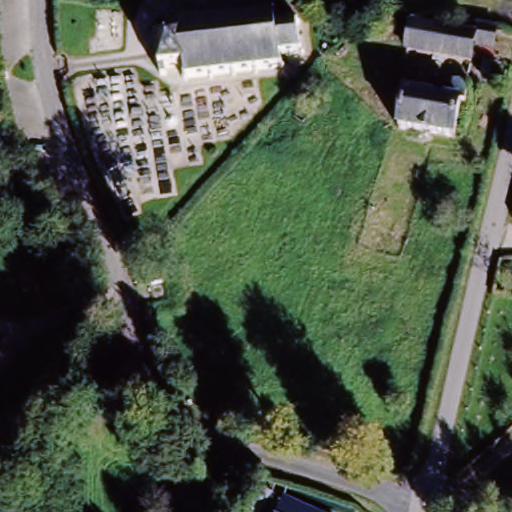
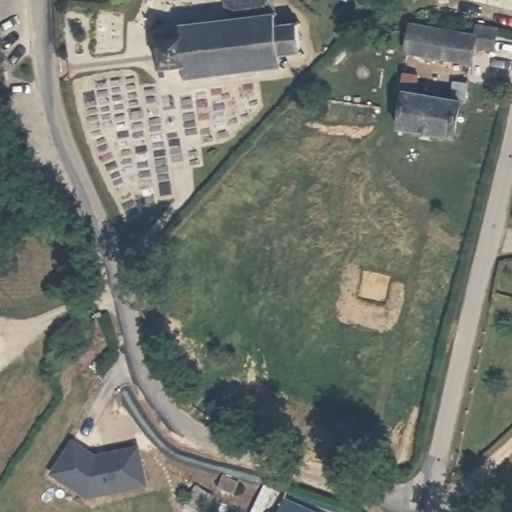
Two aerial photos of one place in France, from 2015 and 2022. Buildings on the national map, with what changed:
unchanged [(160,69),(155,37),(182,32),(181,22),(232,16),(229,0),(274,0),(277,22),(298,19),(303,50),(280,54),(282,66),(187,76),(186,65),(160,69)]
unchanged [(470,61),(402,52),(404,32),(405,22),(410,22),(469,31),(470,23),(495,26),(492,49),(490,64),(470,61)]
unchanged [(468,82),(466,104),(460,103),(453,140),(395,129),(398,107),(388,106),(391,92),(395,93),(398,74),(408,75),(405,92),(450,102),(452,80),(468,82)]
new [(72,437),(96,455),(102,454),(102,452),(137,450),(139,487),(83,492),(50,467),(72,437)]
unchanged [(223,491),(206,486),(210,473),(227,478),(223,491)]
demolished [(272,512),(237,512),(248,483),(278,493),(272,512)]
unchanged [(278,493),(288,496),(285,512),(272,512),(278,493)]
unchanged [(187,496),(203,501),(201,512),(182,512),(187,496)]
unchanged [(288,496),(342,512),(285,512),(288,496)]

